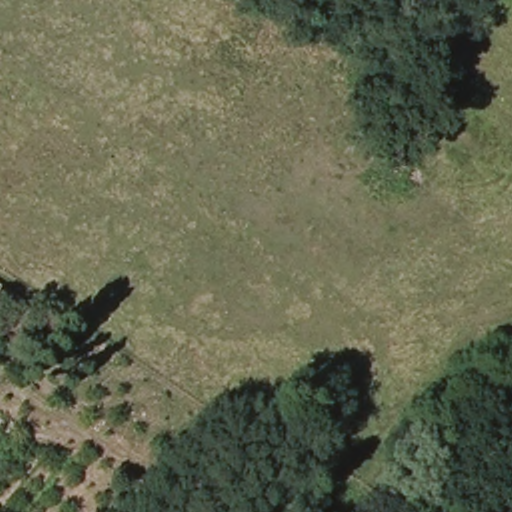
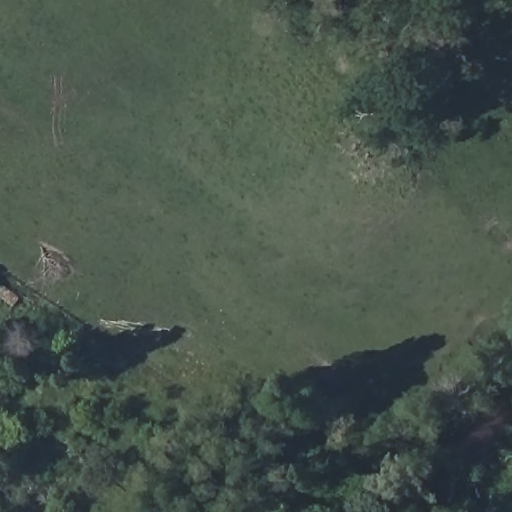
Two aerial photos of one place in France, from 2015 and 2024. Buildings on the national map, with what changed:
unchanged [(17,307),(0,295),(0,283),(22,299),(17,307)]

